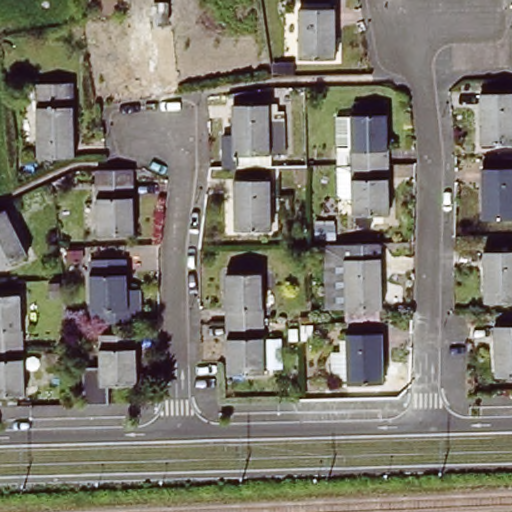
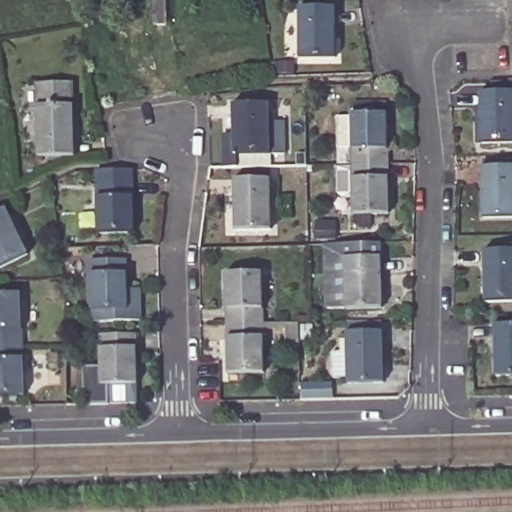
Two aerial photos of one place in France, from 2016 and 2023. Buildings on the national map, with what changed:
unchanged [(335,6),(337,56),(301,57),(300,6),(335,6)]
unchanged [(480,90),(512,89),(512,138),(480,139),(480,90)]
unchanged [(37,161),(33,91),(70,90),(74,160),(37,161)]
unchanged [(271,105),(272,133),(235,140),(235,105),(271,105)]
unchanged [(354,199),(344,199),(343,170),(353,170),(354,166),(339,166),(339,151),(354,150),(354,116),(354,115),(360,115),(389,115),(389,166),(389,215),(354,216),(354,199)]
unchanged [(221,143),(235,140),(272,133),(272,154),(235,156),(236,169),(222,170),(221,143)]
unchanged [(512,214),(482,214),(482,164),(512,164),(512,214)]
unchanged [(100,232),(100,166),(135,166),(135,233),(100,232)]
unchanged [(232,175),(268,175),(269,225),(232,227),(232,175)]
unchanged [(0,263),(0,207),(6,204),(22,242),(27,250),(24,252),(0,263)]
unchanged [(483,249),(512,248),(512,298),(484,298),(483,249)]
unchanged [(332,315),(332,255),(385,254),(385,270),(385,309),(385,319),(332,319),(332,315)]
unchanged [(125,292),(135,292),(136,322),(89,323),(89,263),(125,263),(125,292)]
unchanged [(227,339),(225,317),(225,312),(224,269),(260,269),(261,308),(262,317),(262,334),(262,369),(227,369),(227,339)]
unchanged [(0,389),(0,290),(22,289),(24,339),(25,388),(0,389)]
unchanged [(512,327),(512,376),(496,377),(495,328),(512,327)]
unchanged [(385,382),(349,383),(350,334),(385,334),(385,382)]
unchanged [(99,337),(135,336),(135,357),(135,384),(106,384),(106,403),(81,403),(81,366),(99,366),(99,362),(99,337)]

